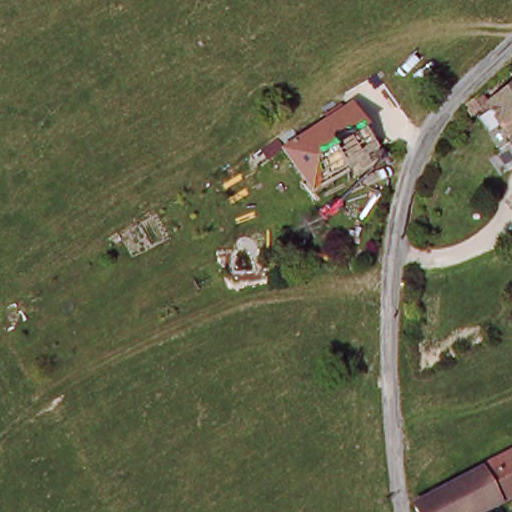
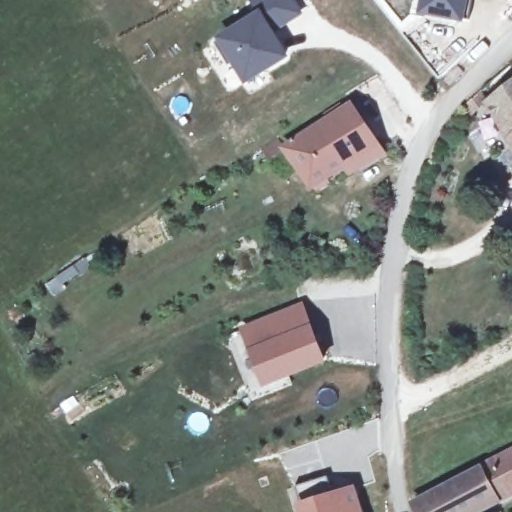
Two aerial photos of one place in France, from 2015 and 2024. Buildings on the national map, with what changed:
new [(251,0),(288,0),(295,11),(266,30),(281,56),(243,80),(231,61),(225,65),(211,43),(254,14),(247,3),(251,0)]
new [(418,10),(419,0),(460,0),(458,16),(418,10)]
unchanged [(512,81),(512,142),(489,113),(484,108),(512,81)]
unchanged [(374,141),(309,183),(288,151),(349,111),(374,141)]
new [(298,305),(316,362),(256,386),(236,327),(298,305)]
unchanged [(416,507),(416,506),(424,504),(512,456),(512,500),(490,512),(419,512),(416,507)]
new [(324,477),(331,496),(350,489),(358,512),(300,512),(292,487),(324,477)]

